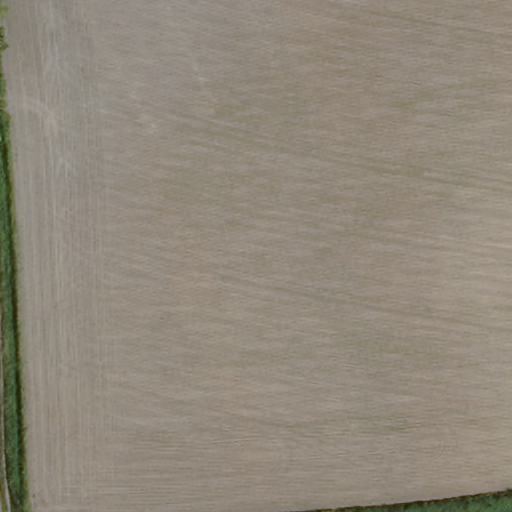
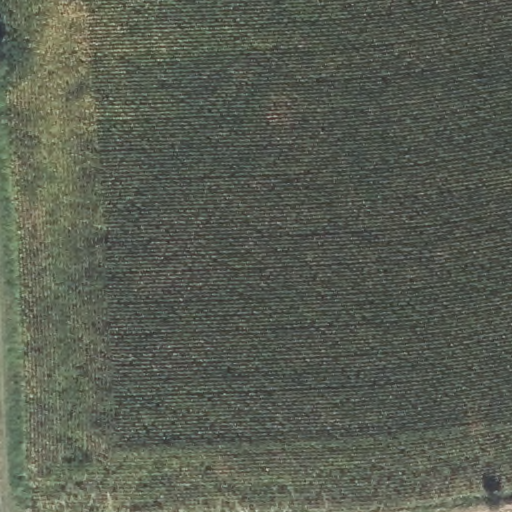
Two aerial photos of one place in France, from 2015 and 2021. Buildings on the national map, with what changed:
[]

